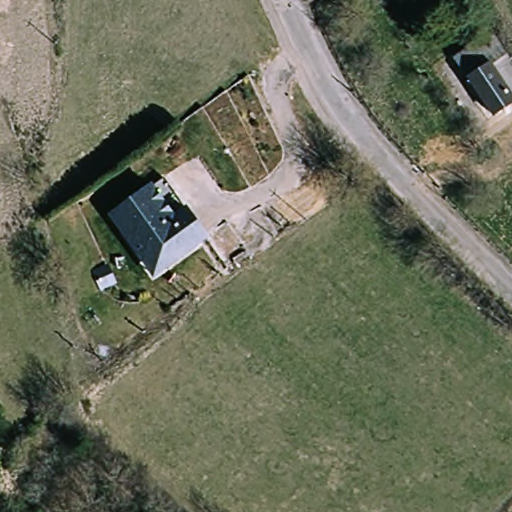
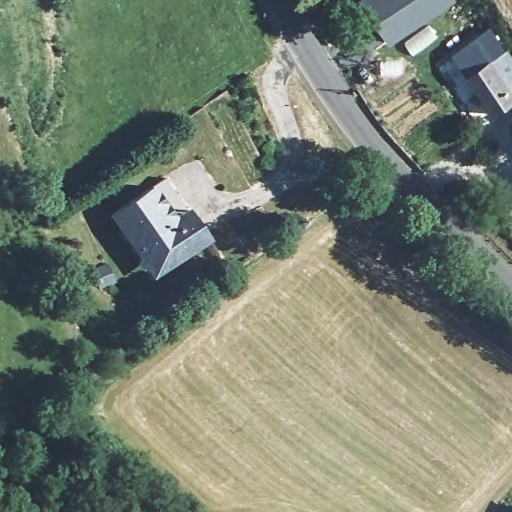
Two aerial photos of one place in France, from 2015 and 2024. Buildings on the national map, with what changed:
new [(389,43),(361,0),(453,0),(389,43)]
unchanged [(512,104),(492,118),(449,58),(485,36),(512,70),(512,104)]
unchanged [(136,250),(110,208),(165,174),(204,236),(162,263),(149,271),(136,250)]

